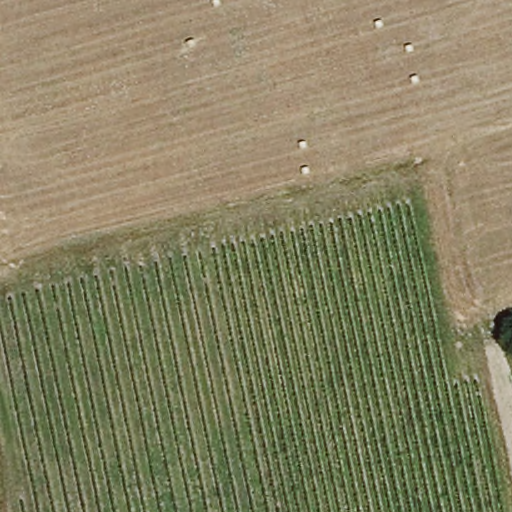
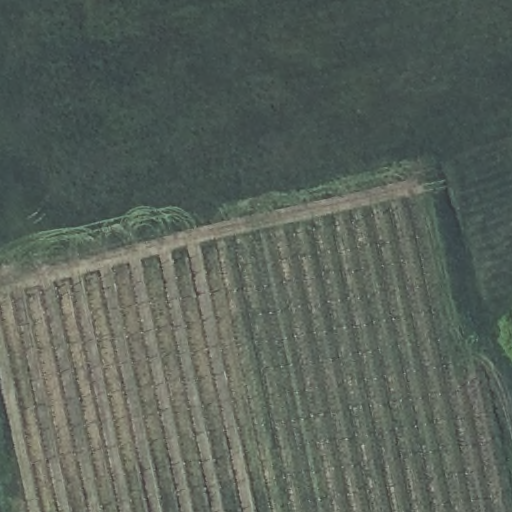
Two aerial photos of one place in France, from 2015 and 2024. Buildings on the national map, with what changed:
[]

